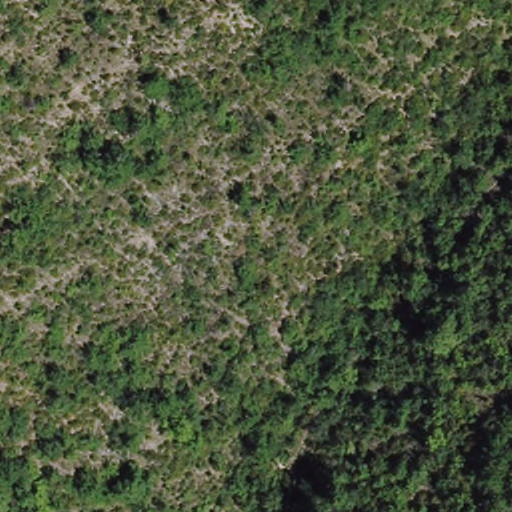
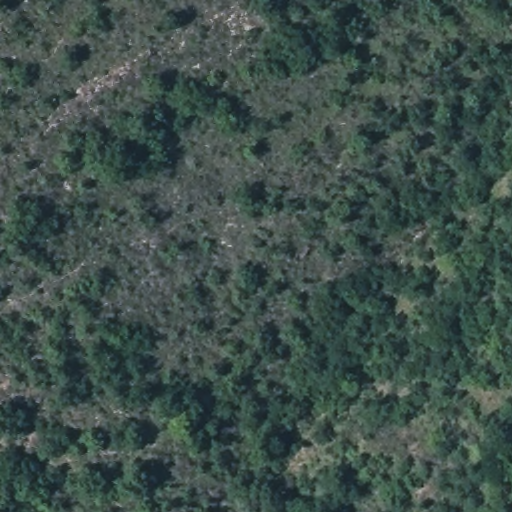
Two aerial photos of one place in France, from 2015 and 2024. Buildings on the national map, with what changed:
[]

